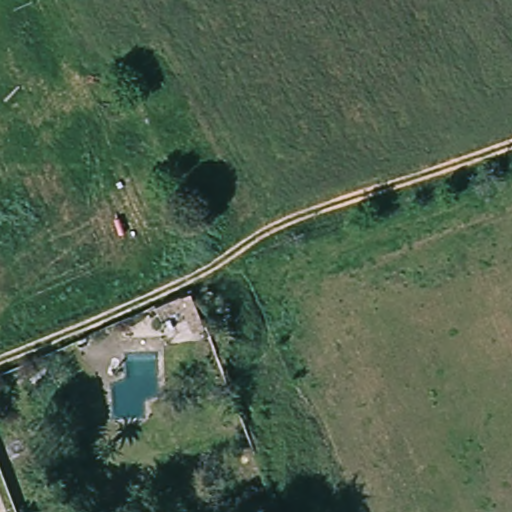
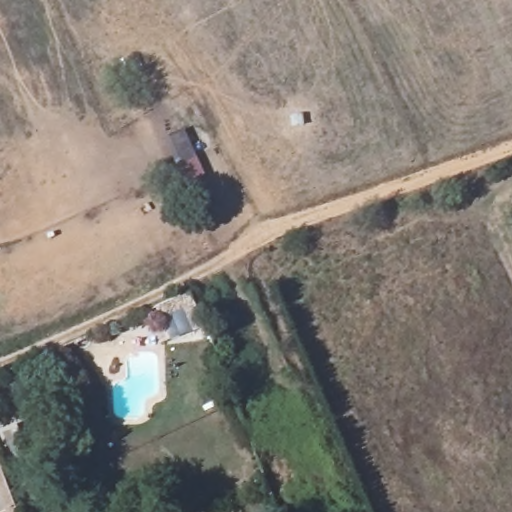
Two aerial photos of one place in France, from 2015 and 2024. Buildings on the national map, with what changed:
unchanged [(190,296),(203,327),(192,333),(182,310),(161,319),(157,306),(190,296)]

